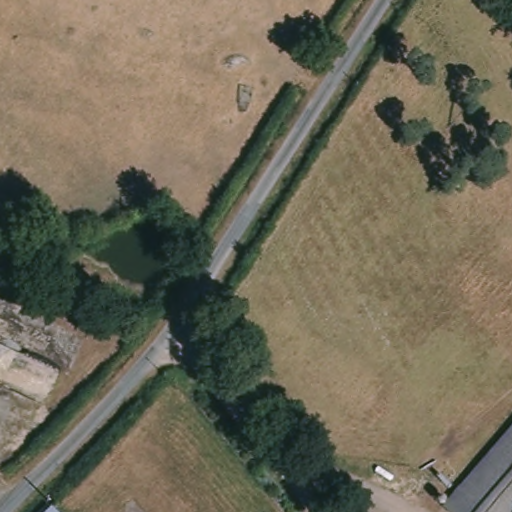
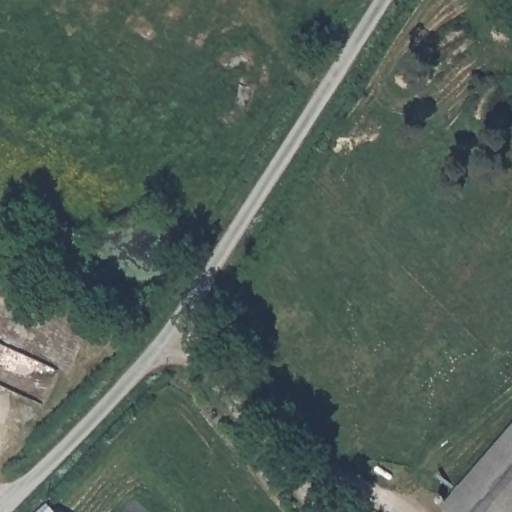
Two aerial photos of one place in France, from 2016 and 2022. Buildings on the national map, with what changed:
unchanged [(500,434),(512,422),(512,512),(444,512),(434,502),(451,485),(500,434)]
unchanged [(45,512),(44,512),(44,511),(45,512)]

